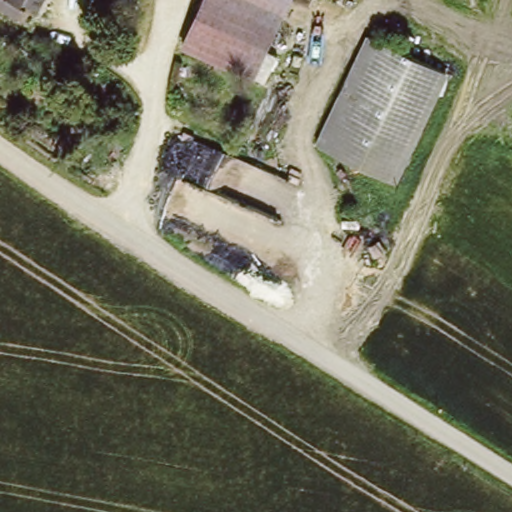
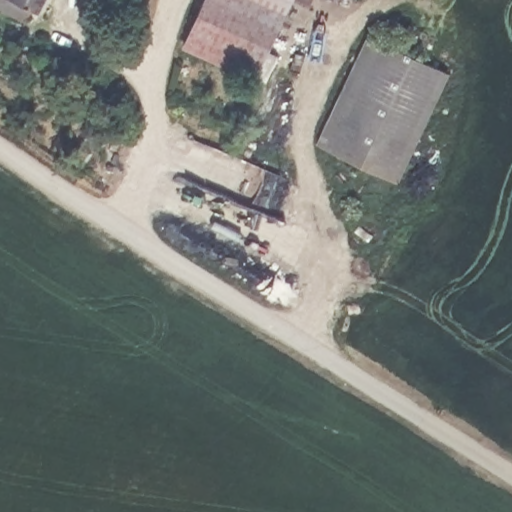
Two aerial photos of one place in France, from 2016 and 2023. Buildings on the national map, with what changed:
unchanged [(42,21),(32,16),(26,27),(0,12),(0,9),(5,0),(4,0),(53,0),(42,21)]
unchanged [(254,84),(182,51),(205,0),(291,0),(254,84)]
unchanged [(370,38),(447,75),(395,182),(319,144),(370,38)]

